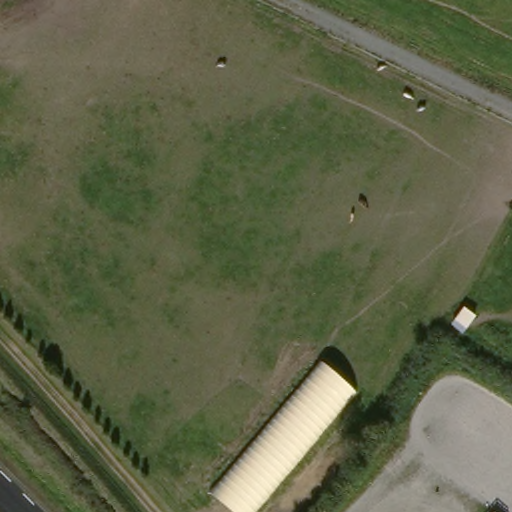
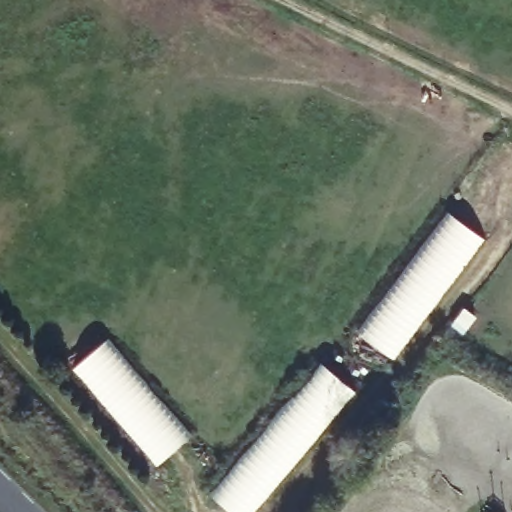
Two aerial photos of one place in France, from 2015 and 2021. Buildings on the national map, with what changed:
new [(361,335),(449,214),(482,239),(391,358),(361,335)]
new [(76,369),(106,343),(191,437),(160,465),(76,369)]
unchanged [(258,512),(229,512),(210,495),(321,362),(357,394),(258,512)]

